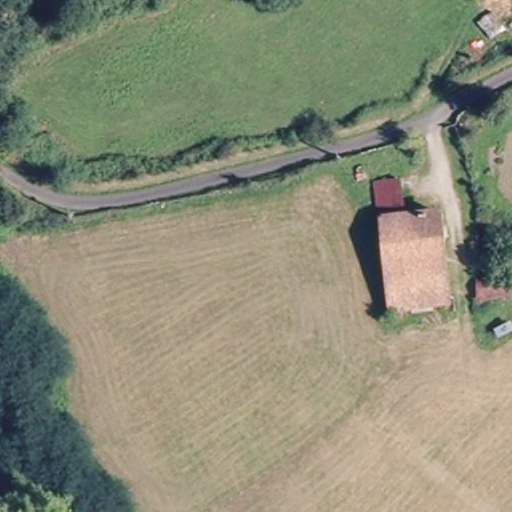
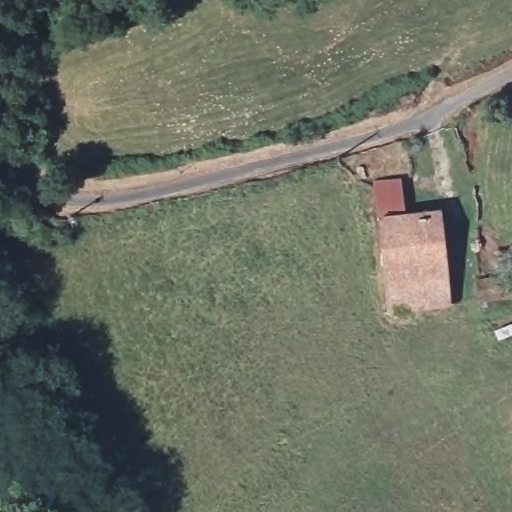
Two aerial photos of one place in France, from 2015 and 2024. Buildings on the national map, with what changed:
unchanged [(369,186),(398,182),(402,219),(375,222),(369,186)]
unchanged [(433,216),(449,306),(388,314),(375,222),(402,219),(433,216)]
unchanged [(512,279),(512,299),(482,303),(480,283),(512,279)]

